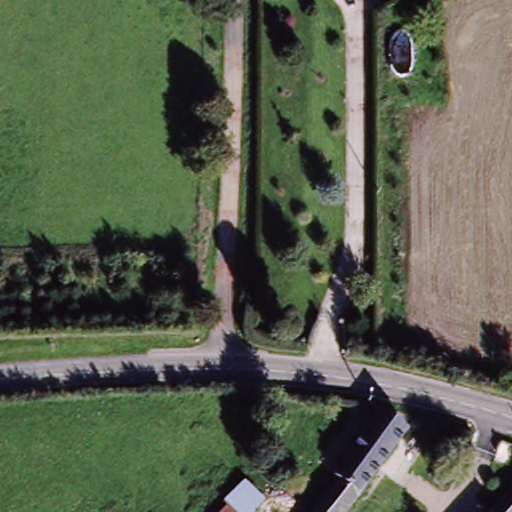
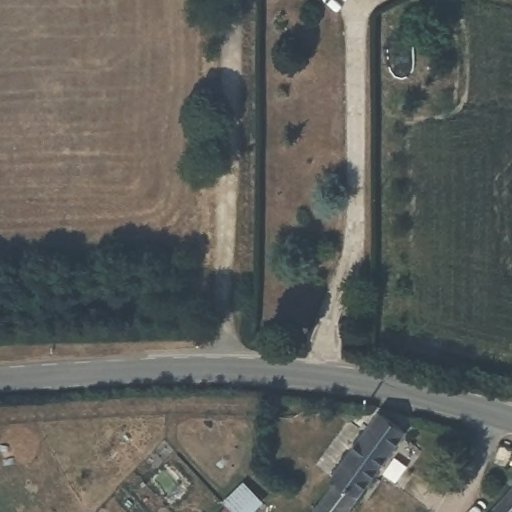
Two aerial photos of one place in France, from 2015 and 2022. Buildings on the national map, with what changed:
unchanged [(392,421),(399,427),(337,512),(304,512),(328,477),(371,420),(385,430),(392,421)]
unchanged [(254,512),(220,512),(242,486),(262,502),(254,512)]
unchanged [(512,512),(491,512),(512,490),(512,512)]

